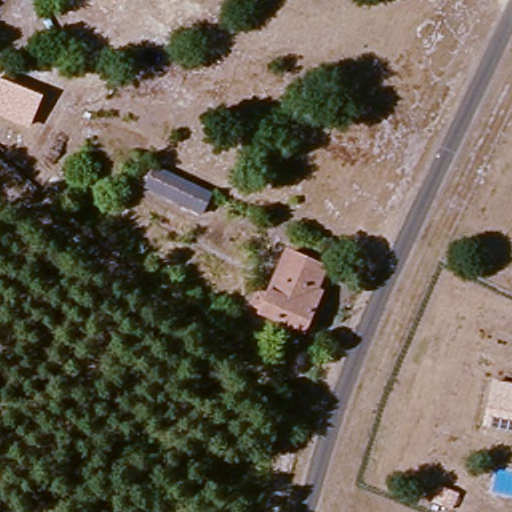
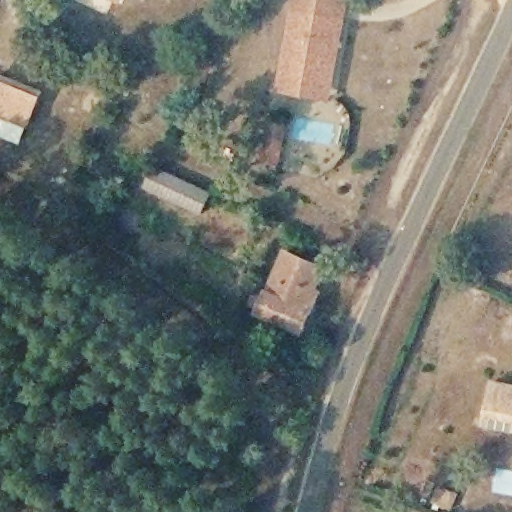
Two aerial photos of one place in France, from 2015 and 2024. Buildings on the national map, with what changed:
unchanged [(121,4),(111,0),(123,0),(121,4)]
new [(278,89),(294,0),(348,0),(330,97),(278,89)]
unchanged [(42,95),(29,128),(0,117),(0,79),(42,95)]
unchanged [(214,190),(205,212),(144,184),(155,160),(214,190)]
unchanged [(305,332),(255,305),(290,238),(320,253),(313,273),(330,280),(305,332)]
unchanged [(512,432),(481,424),(490,380),(512,384),(512,432)]

